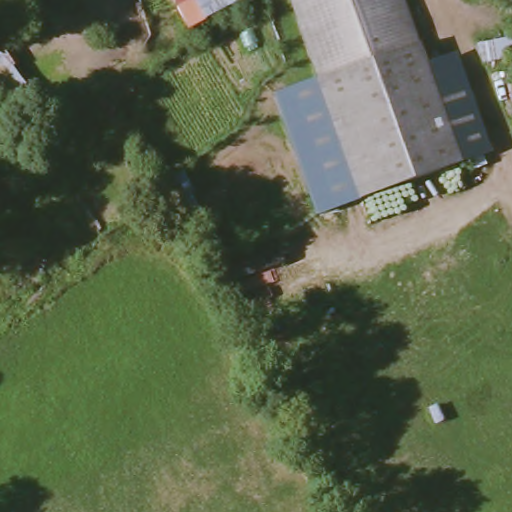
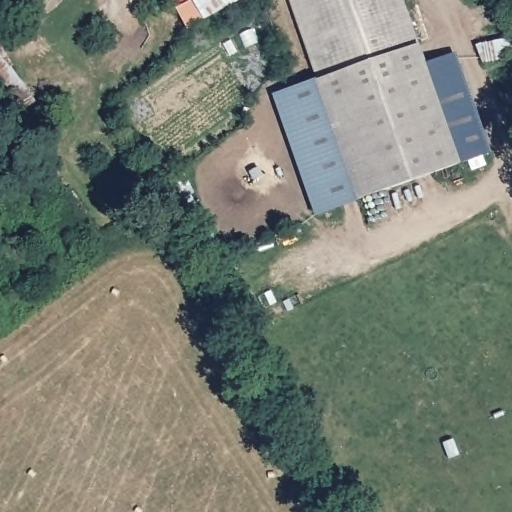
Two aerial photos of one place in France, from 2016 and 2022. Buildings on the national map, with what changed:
unchanged [(165,0),(190,0),(198,14),(183,23),(165,0)]
unchanged [(190,0),(225,0),(198,14),(190,0)]
unchanged [(460,164),(359,200),(315,74),(290,0),(401,0),(425,69),(460,164)]
unchanged [(512,56),(482,61),(477,46),(512,39),(512,56)]
unchanged [(41,109),(14,126),(0,103),(0,42),(41,109)]
unchanged [(457,59),(490,153),(460,164),(425,69),(457,59)]
unchanged [(359,200),(317,214),(272,88),(315,74),(359,200)]

